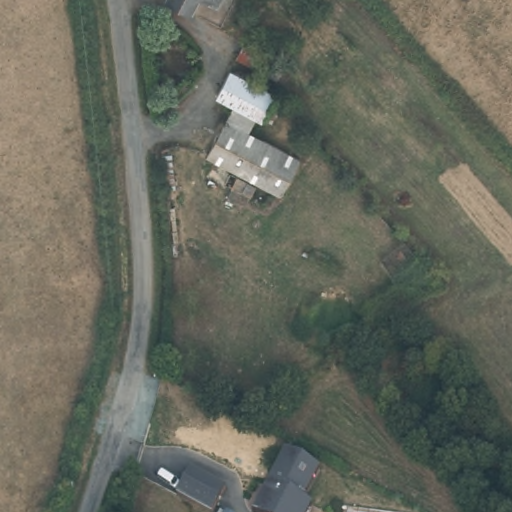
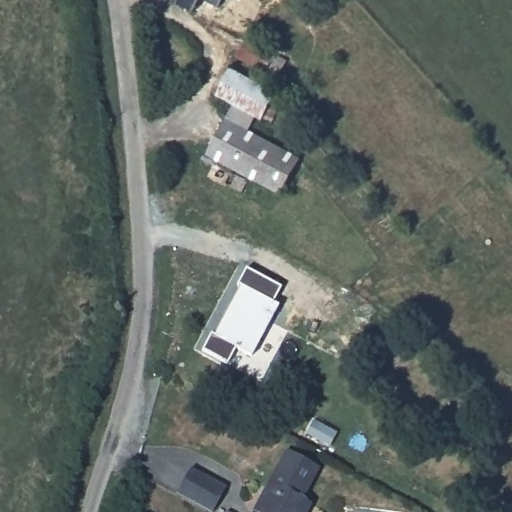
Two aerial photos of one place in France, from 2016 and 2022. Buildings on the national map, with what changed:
unchanged [(172,0),(197,0),(192,11),(172,0)]
unchanged [(219,0),(217,4),(210,0),(219,0)]
unchanged [(286,56),(278,72),(239,52),(247,36),(286,56)]
unchanged [(219,93),(231,67),(275,90),(263,115),(260,113),(234,101),(219,93)]
unchanged [(210,155),(220,133),(234,101),(260,113),(252,131),(301,155),(283,192),(280,190),(255,177),(210,155)]
unchanged [(166,174),(165,156),(174,156),(175,174),(166,174)]
new [(208,332),(213,333),(237,288),(235,286),(245,268),(280,286),(272,301),(281,305),(253,357),(235,349),(227,366),(199,352),(208,332)]
unchanged [(312,504),(308,512),(255,512),(282,452),(317,469),(302,500),(312,504)]
unchanged [(191,465),(226,483),(211,512),(176,493),(191,465)]

